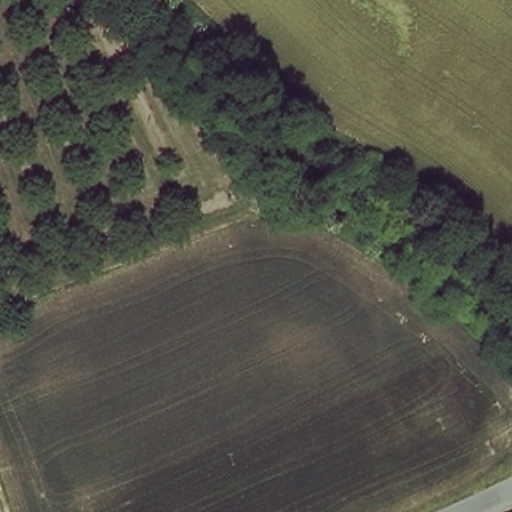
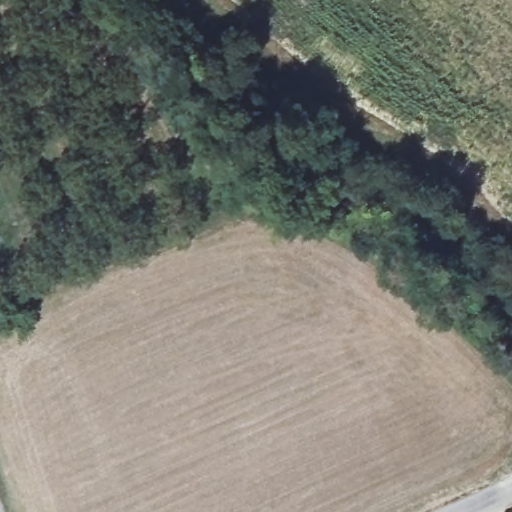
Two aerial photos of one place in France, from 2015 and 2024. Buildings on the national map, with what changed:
[]

